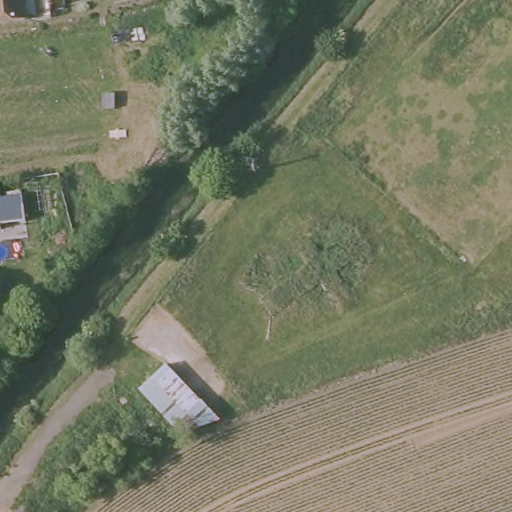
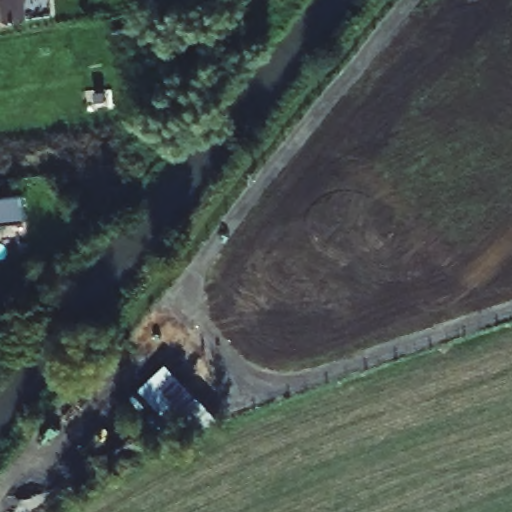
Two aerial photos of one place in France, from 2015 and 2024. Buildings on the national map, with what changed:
unchanged [(24,22),(0,25),(0,0),(22,0),(24,22)]
unchanged [(201,407),(171,435),(134,389),(161,362),(201,407)]

